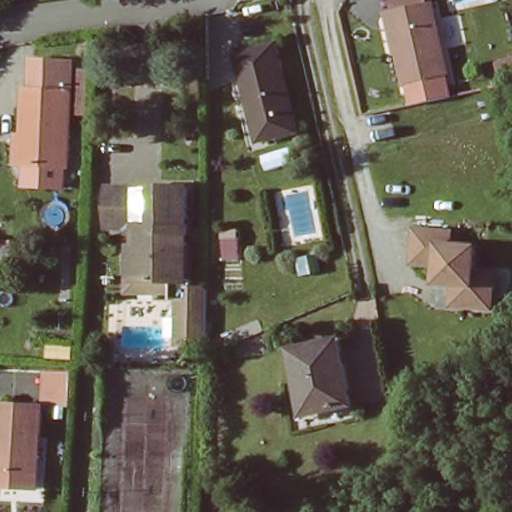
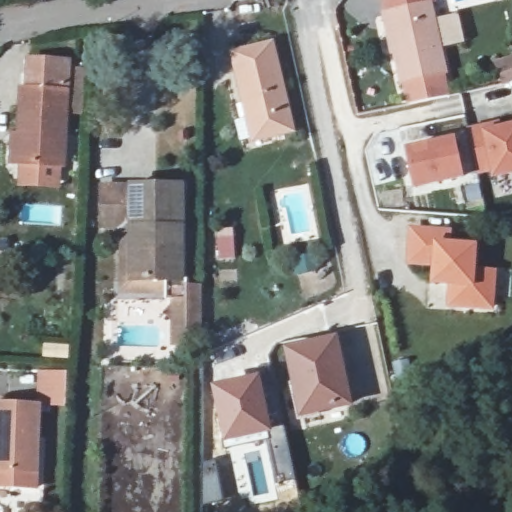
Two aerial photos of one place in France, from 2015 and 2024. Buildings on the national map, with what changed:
unchanged [(415,89),(404,91),(386,24),(397,22),(393,6),(418,0),(433,0),(437,12),(445,9),(462,78),(452,80),(455,91),(418,100),(415,89)]
unchanged [(236,54),(273,46),(291,131),(253,140),(236,54)]
unchanged [(29,94),(30,66),(69,67),(68,96),(66,174),(21,173),(23,94),(29,94)]
new [(478,168),(468,128),(485,124),(499,121),(500,127),(512,124),(512,169),(495,172),(493,165),(478,168)]
new [(454,137),(463,174),(415,185),(406,148),(454,137)]
unchanged [(120,229),(102,229),(101,185),(134,185),(160,185),(185,185),(184,279),(166,280),(136,280),(122,281),(120,229)]
unchanged [(454,238),(453,251),(483,253),(482,275),(498,276),(497,313),(451,310),(452,274),(438,273),(438,269),(415,267),(417,235),(454,238)]
unchanged [(185,284),(205,283),(205,346),(172,346),(169,285),(185,284)]
unchanged [(291,351),(337,342),(350,406),(305,415),(291,351)]
new [(261,375),(273,432),(223,444),(211,388),(261,375)]
unchanged [(49,397),(44,483),(0,479),(0,395),(49,397)]

